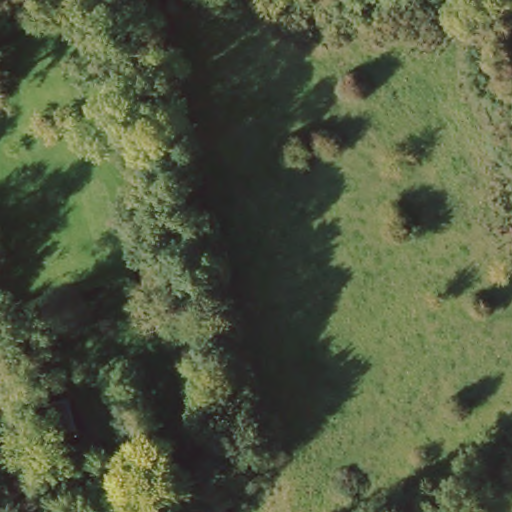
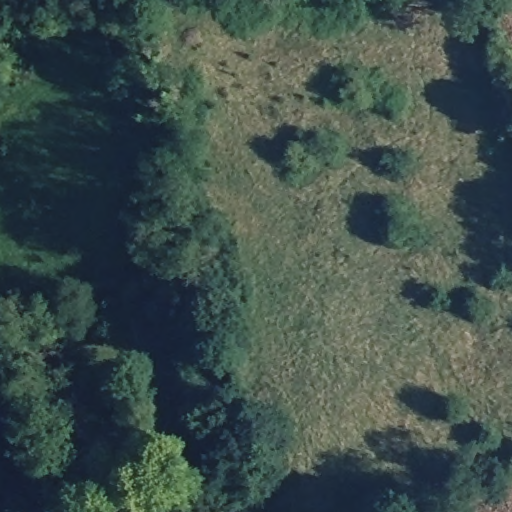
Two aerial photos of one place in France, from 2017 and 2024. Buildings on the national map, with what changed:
unchanged [(57,395),(68,425),(49,432),(37,402),(57,395)]
unchanged [(199,415),(219,460),(200,468),(180,423),(199,415)]

